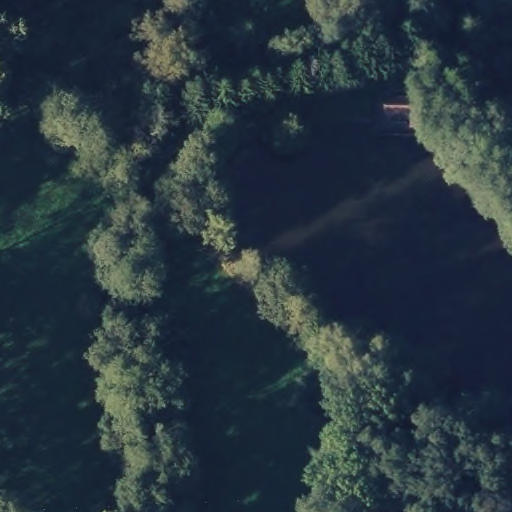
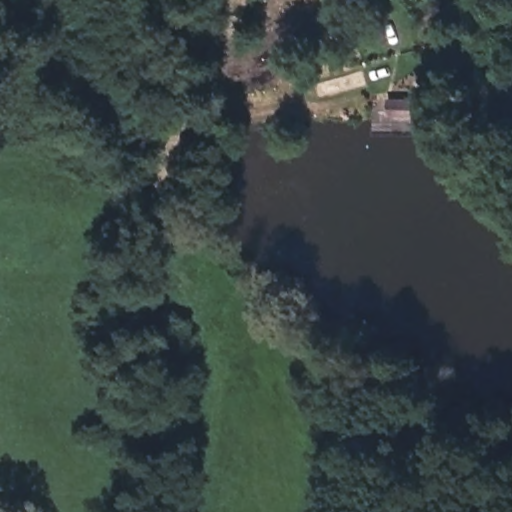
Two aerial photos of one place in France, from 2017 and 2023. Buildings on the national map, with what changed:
unchanged [(410,96),(411,112),(386,112),(386,97),(410,96)]

